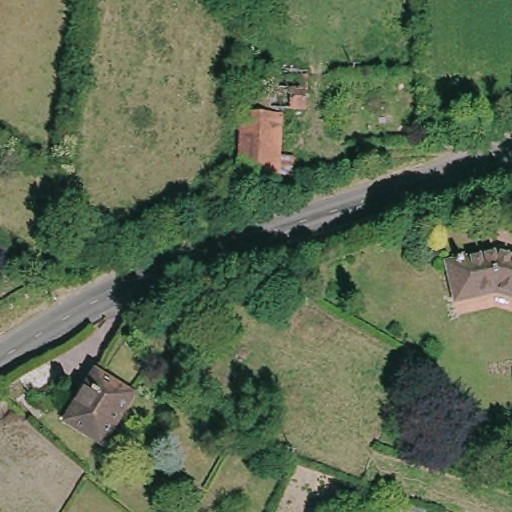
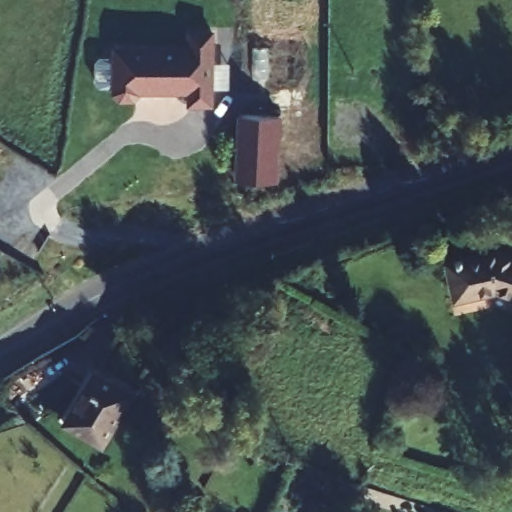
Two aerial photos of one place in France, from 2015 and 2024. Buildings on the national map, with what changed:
new [(187,107),(187,95),(141,95),(134,102),(118,101),(111,94),(110,45),(188,45),(188,29),(214,30),(214,108),(187,107)]
demolished [(309,108),(273,106),(274,85),(310,86),(309,108)]
unchanged [(241,111),(280,113),(276,182),(237,180),(241,111)]
unchanged [(501,289),(460,299),(451,264),(457,263),(456,260),(464,257),(466,260),(501,251),(512,254),(512,292),(501,289)]
unchanged [(135,398),(105,449),(66,425),(89,387),(84,384),(93,369),(136,395),(135,398)]
unchanged [(331,504),(329,512),(302,512),(306,502),(316,505),(317,501),(331,504)]

